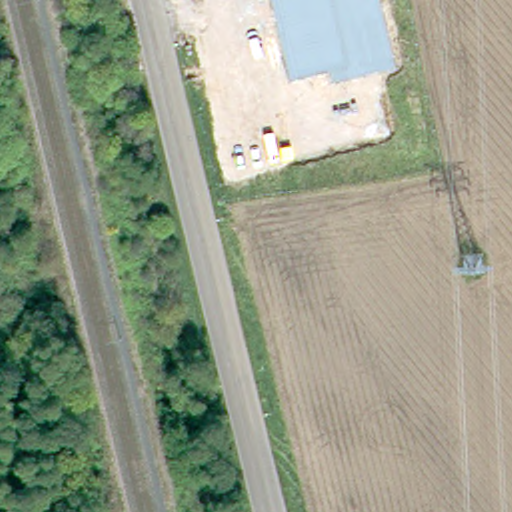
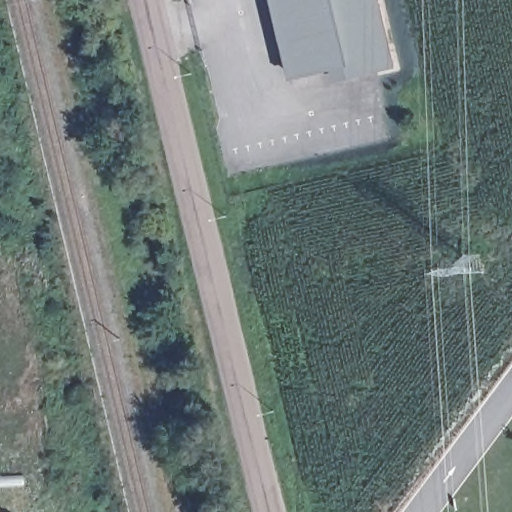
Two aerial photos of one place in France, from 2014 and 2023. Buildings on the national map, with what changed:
unchanged [(335,79),(332,68),(290,80),(273,0),(381,0),(397,64),(335,79)]

